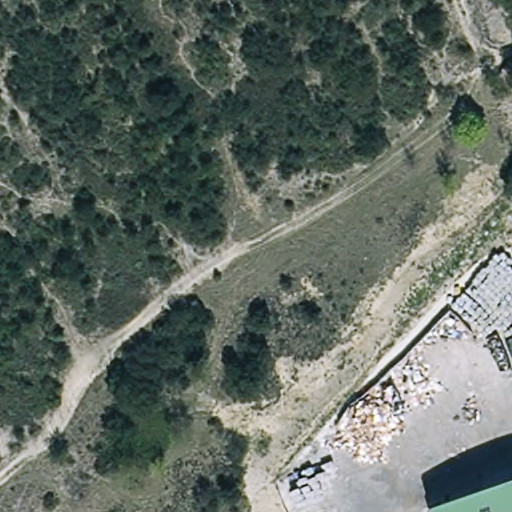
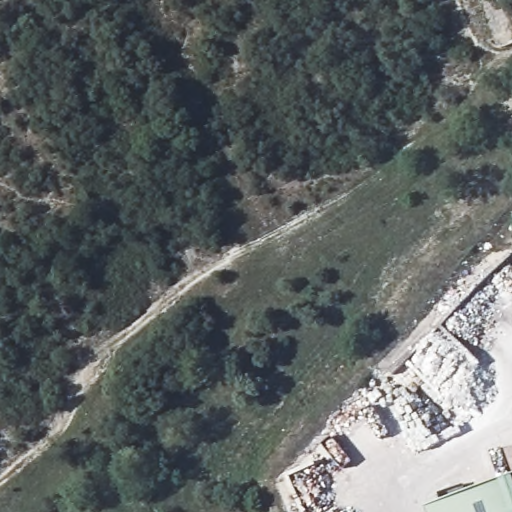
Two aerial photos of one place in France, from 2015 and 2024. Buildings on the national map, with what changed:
unchanged [(512,483),(512,512),(431,512),(431,511),(512,483)]

